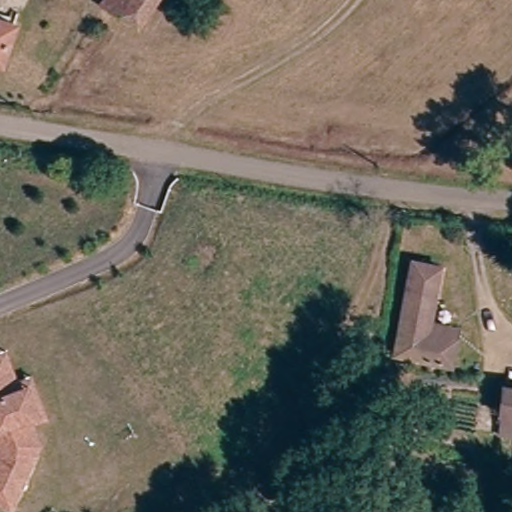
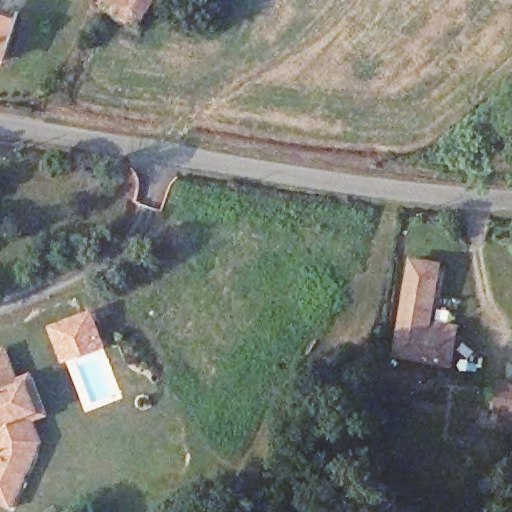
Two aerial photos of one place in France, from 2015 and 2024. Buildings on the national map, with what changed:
unchanged [(136,25),(99,1),(100,0),(153,0),(136,25)]
unchanged [(0,19),(8,22),(0,47),(0,19)]
unchanged [(457,336),(451,366),(434,362),(393,352),(408,256),(424,259),(434,260),(432,273),(424,317),(459,321),(457,336)]
new [(93,309),(107,346),(60,363),(46,325),(93,309)]
unchanged [(36,375),(49,416),(35,422),(44,441),(12,508),(0,503),(0,349),(7,346),(19,382),(36,375)]
unchanged [(502,383),(512,384),(512,426),(496,424),(498,411),(500,396),(502,383)]

